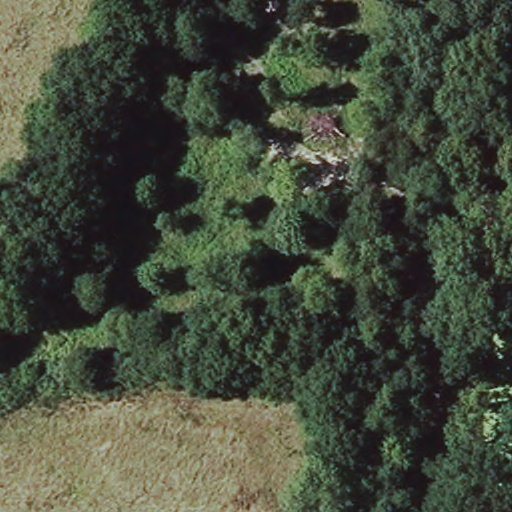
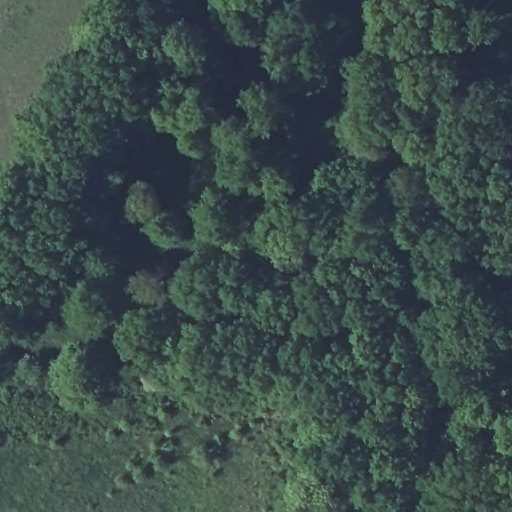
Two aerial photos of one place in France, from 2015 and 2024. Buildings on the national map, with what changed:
[]

